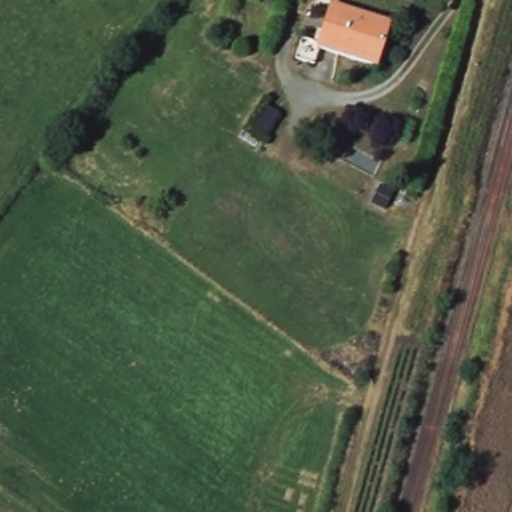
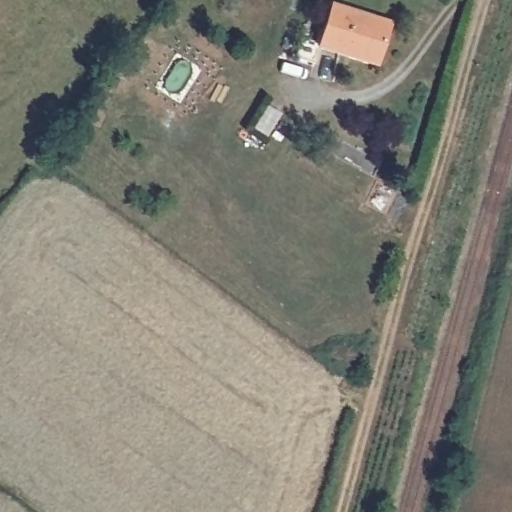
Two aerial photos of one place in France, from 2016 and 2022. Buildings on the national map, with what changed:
unchanged [(392,26),(375,71),(322,53),(317,67),(292,62),(302,40),(317,44),(329,5),(392,26)]

